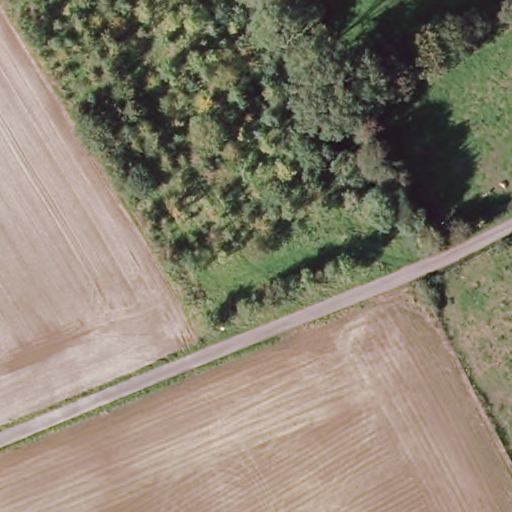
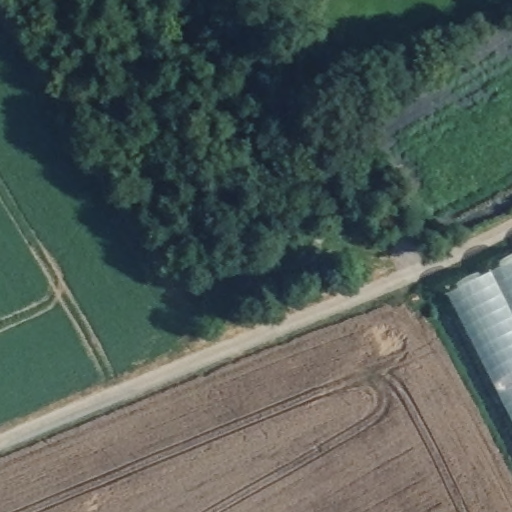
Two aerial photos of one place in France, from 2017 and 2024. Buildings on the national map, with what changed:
new [(512,261),(512,415),(450,293),(512,261)]

